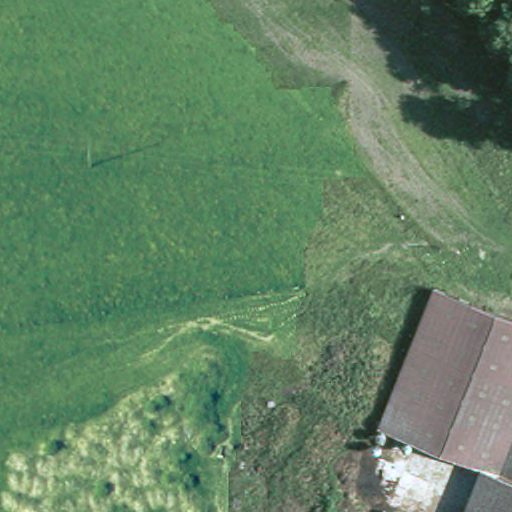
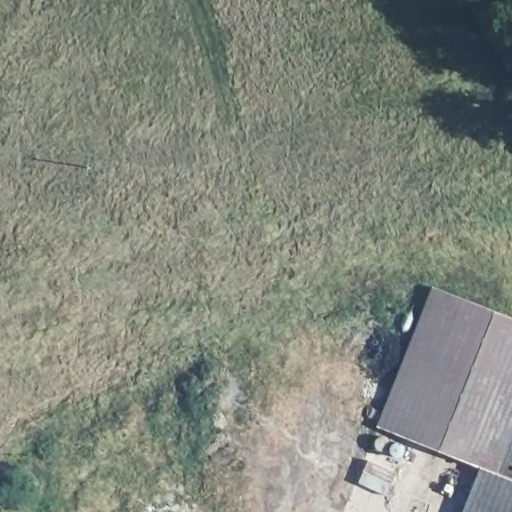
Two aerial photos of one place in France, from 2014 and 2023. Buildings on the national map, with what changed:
unchanged [(493,471),(372,421),(429,284),(512,318),(512,479),(493,471)]
unchanged [(476,512),(493,471),(512,479),(512,512),(476,512)]

